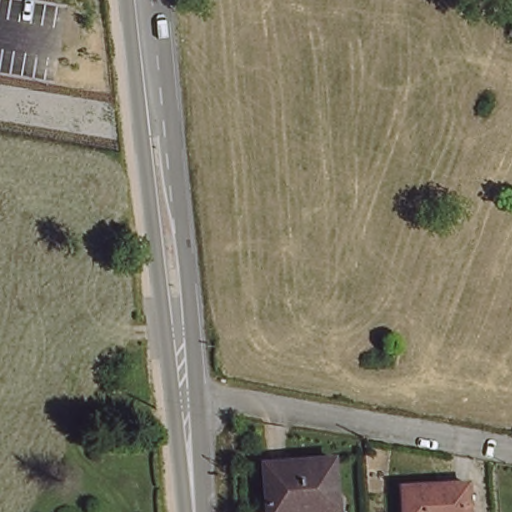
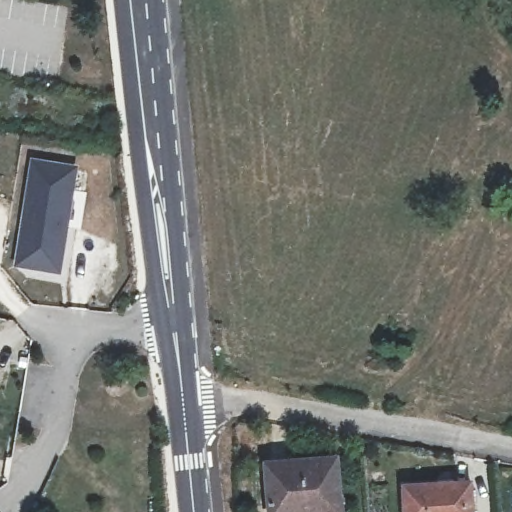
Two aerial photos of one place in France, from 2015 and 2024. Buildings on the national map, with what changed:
new [(17,263),(33,161),(70,166),(75,167),(72,190),(59,270),(17,263)]
unchanged [(267,463),(335,458),(339,505),(339,512),(270,512),(267,463)]
unchanged [(405,486),(470,482),(472,512),(406,512),(405,486)]

